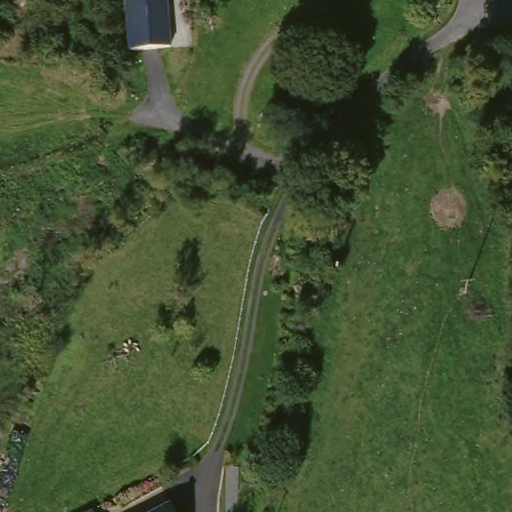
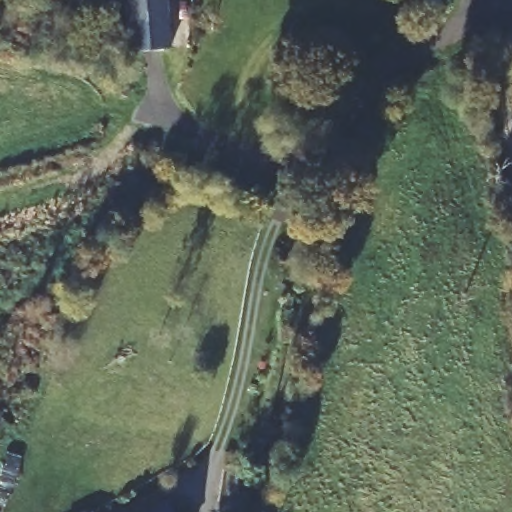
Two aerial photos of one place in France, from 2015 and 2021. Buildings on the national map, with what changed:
unchanged [(170,42),(130,44),(128,0),(168,0),(170,42)]
unchanged [(175,512),(156,512),(172,504),(175,512)]

